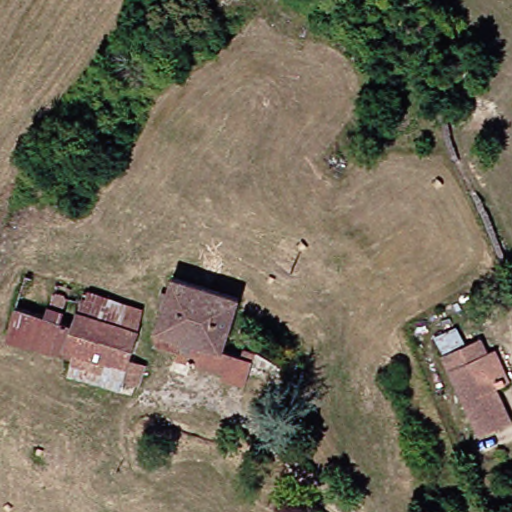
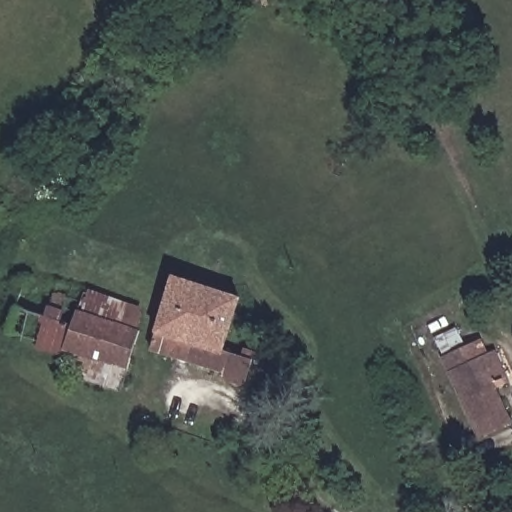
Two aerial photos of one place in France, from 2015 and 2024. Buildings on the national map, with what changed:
unchanged [(229,350),(260,360),(252,385),(230,378),(231,372),(185,357),(187,352),(159,342),(180,277),(245,298),(229,350)]
unchanged [(13,339),(30,280),(62,290),(60,297),(54,322),(77,330),(68,355),(13,339)]
unchanged [(142,390),(127,385),(124,394),(72,379),(78,357),(68,355),(77,330),(54,322),(60,297),(86,306),(90,296),(115,305),(146,316),(144,335),(134,365),(148,370),(142,390)]
unchanged [(512,416),(512,423),(484,436),(449,358),(485,342),(492,356),(493,356),(500,352),(512,378),(512,380),(505,383),(499,387),(512,416)]
unchanged [(260,360),(262,353),(292,363),(280,396),(252,385),(260,360)]

